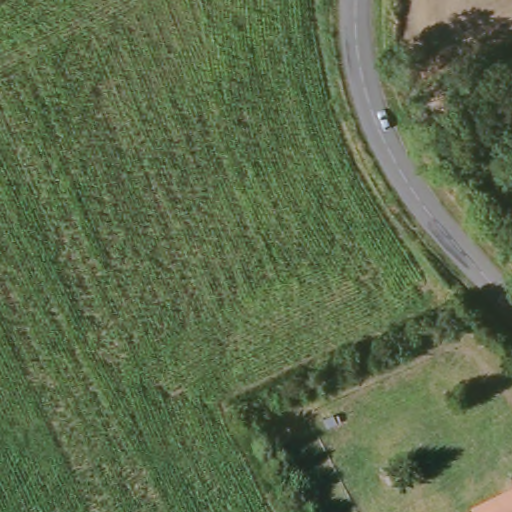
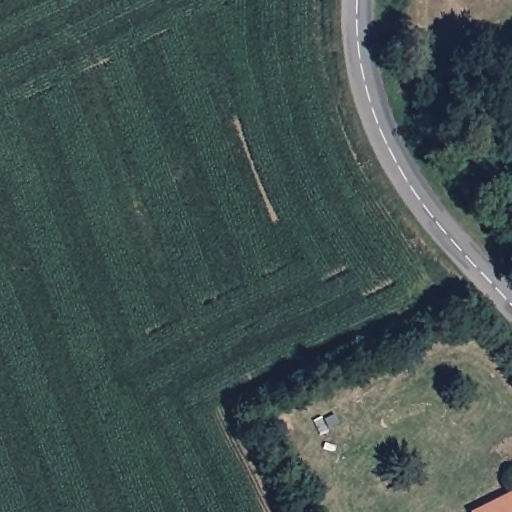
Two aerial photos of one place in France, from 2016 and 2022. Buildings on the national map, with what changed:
unchanged [(512,493),(512,512),(472,512),(512,493)]

